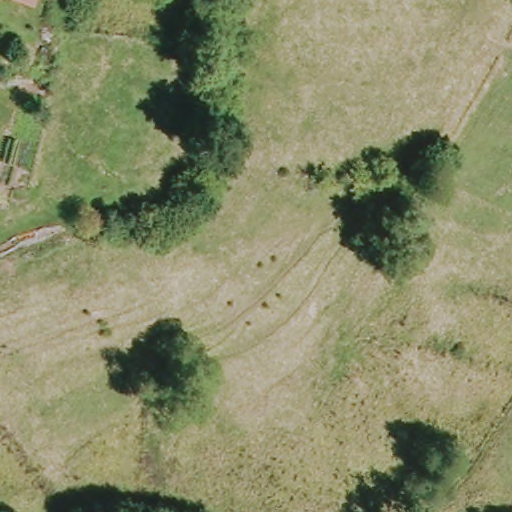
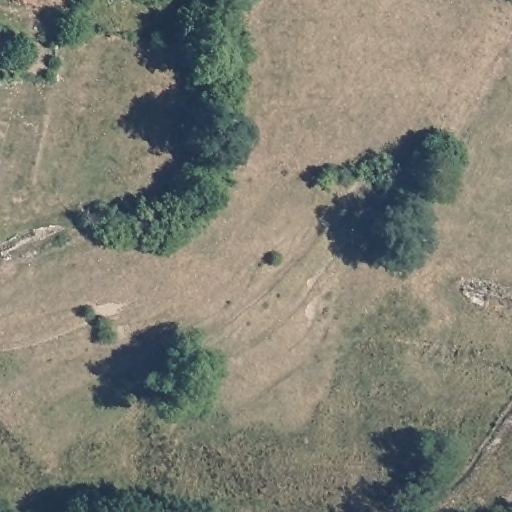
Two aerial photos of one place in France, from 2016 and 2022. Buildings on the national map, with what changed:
unchanged [(42,0),(42,2),(34,0),(42,0)]
unchanged [(0,171),(0,164),(2,165),(0,171)]
unchanged [(5,187),(2,201),(0,201),(0,185),(5,187)]

